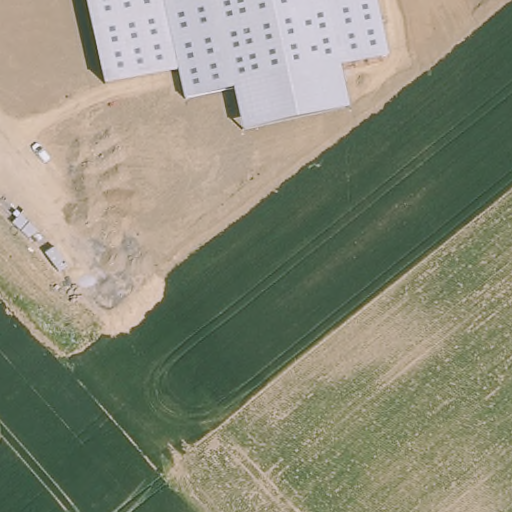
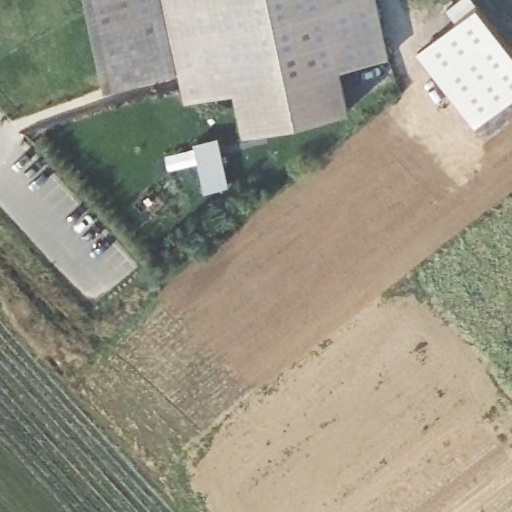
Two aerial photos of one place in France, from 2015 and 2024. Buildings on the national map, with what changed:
unchanged [(387,59),(339,70),(348,111),(244,131),(235,91),(185,101),(177,72),(103,89),(85,0),(374,0),(387,59)]
new [(512,47),(512,94),(476,122),(417,48),(457,17),(447,6),(455,0),(474,0),(477,4),(512,47)]
new [(227,184),(204,189),(194,141),(217,136),(227,184)]
new [(182,212),(155,183),(170,170),(197,200),(182,212)]

